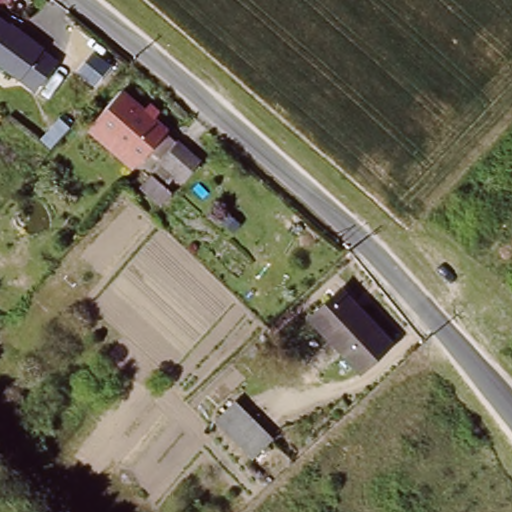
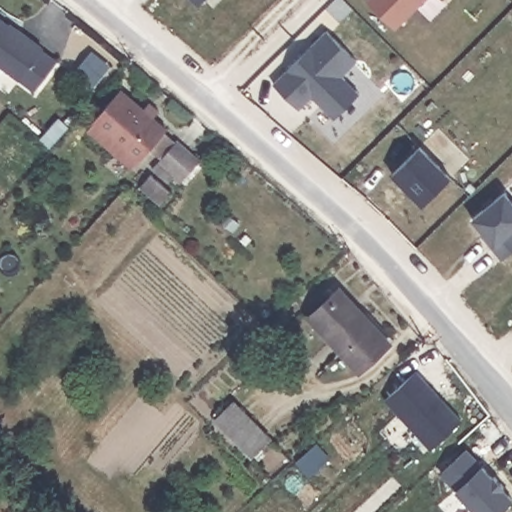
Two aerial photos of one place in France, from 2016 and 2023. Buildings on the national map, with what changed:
new [(198,6),(192,0),(204,0),(198,6)]
new [(368,0),(426,0),(396,30),(367,0),(368,0)]
unchanged [(8,78),(0,71),(0,21),(4,24),(10,18),(38,43),(8,78)]
new [(327,31),(357,61),(343,76),(360,94),(335,119),(313,96),(299,109),(274,84),(327,31)]
unchanged [(65,67),(34,101),(8,78),(38,43),(65,67)]
new [(96,54),(111,67),(94,86),(80,73),(96,54)]
unchanged [(200,162),(178,185),(148,158),(132,175),(84,131),(122,89),(200,162)]
new [(422,147),(451,177),(422,205),(392,173),(422,147)]
new [(512,201),(512,253),(503,261),(494,246),(473,219),(506,193),(512,201)]
unchanged [(341,292),(392,349),(361,377),(310,320),(341,292)]
new [(416,372),(462,421),(432,449),(386,400),(416,372)]
unchanged [(217,428),(236,409),(272,445),(253,464),(217,428)]
new [(512,497),(512,501),(500,512),(476,512),(456,491),(483,466),(512,497)]

